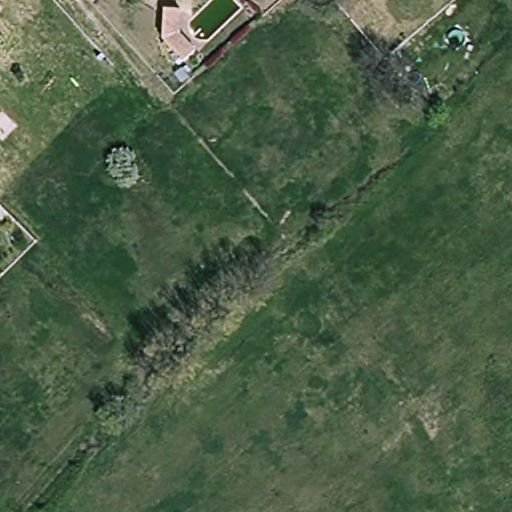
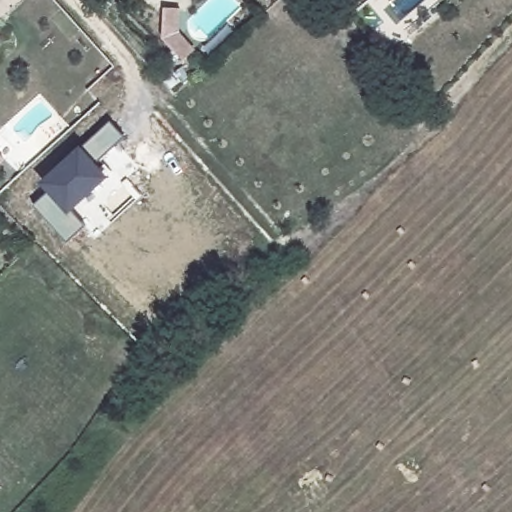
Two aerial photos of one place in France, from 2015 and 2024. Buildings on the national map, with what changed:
unchanged [(183,6),(181,30),(196,48),(184,59),(164,36),(166,5),(183,6)]
new [(48,192),(39,182),(80,145),(82,147),(110,121),(124,136),(96,162),(109,177),(71,211),(85,225),(68,241),(34,205),(48,192)]
new [(0,158),(0,147),(5,152),(0,158)]

